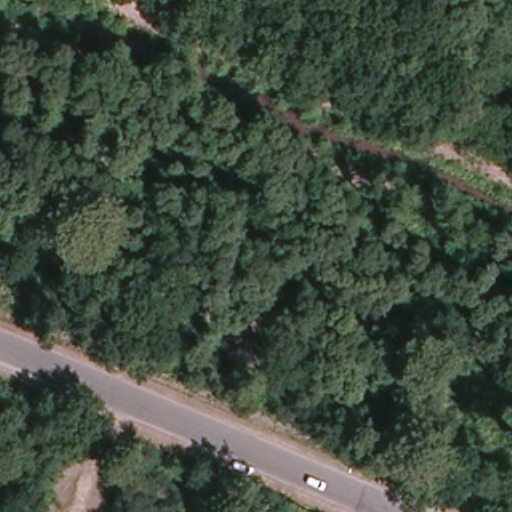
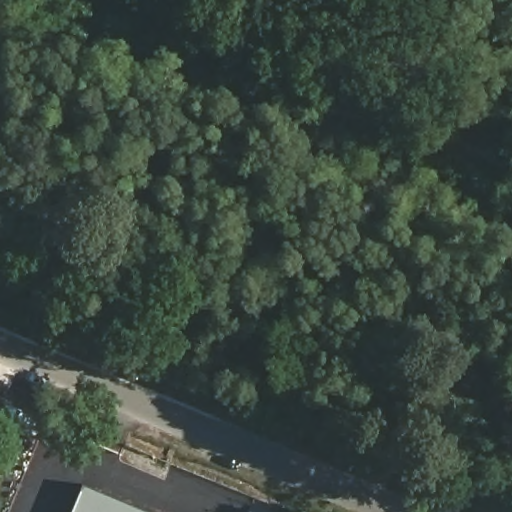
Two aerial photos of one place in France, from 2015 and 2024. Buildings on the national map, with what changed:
new [(144,512),(71,512),(82,486),(144,512)]

